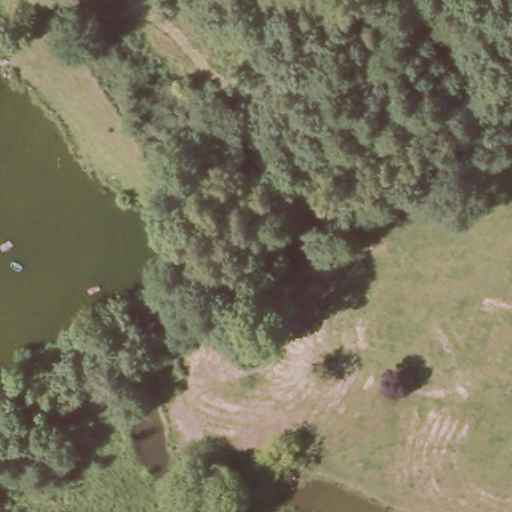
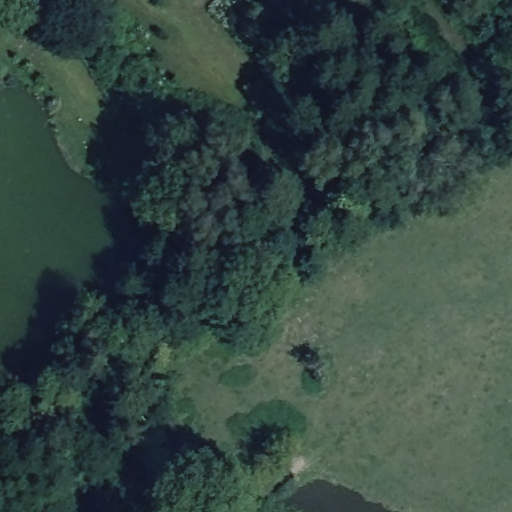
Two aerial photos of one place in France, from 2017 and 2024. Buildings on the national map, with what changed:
unchanged [(512,53),(512,68),(493,83),(481,64),(506,44),(512,53)]
unchanged [(56,398),(50,387),(147,328),(155,339),(56,398)]

